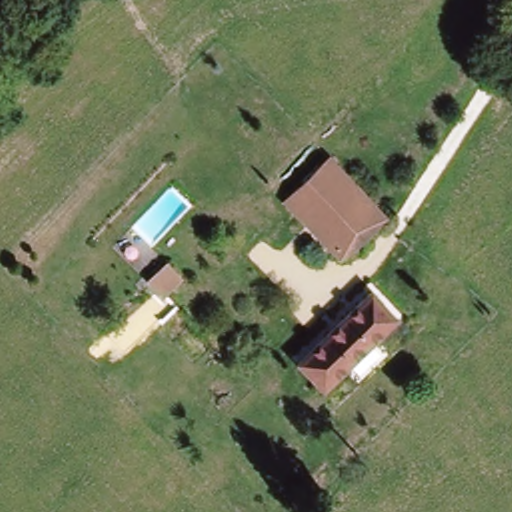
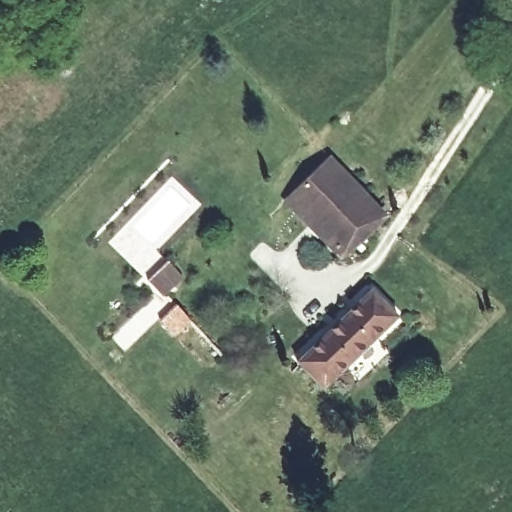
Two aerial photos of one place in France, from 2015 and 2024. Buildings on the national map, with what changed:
unchanged [(393,222),(347,268),(276,194),(326,148),(393,222)]
unchanged [(134,278),(154,259),(173,279),(152,298),(134,278)]
unchanged [(325,393),(298,366),(369,291),(395,316),(325,393)]

